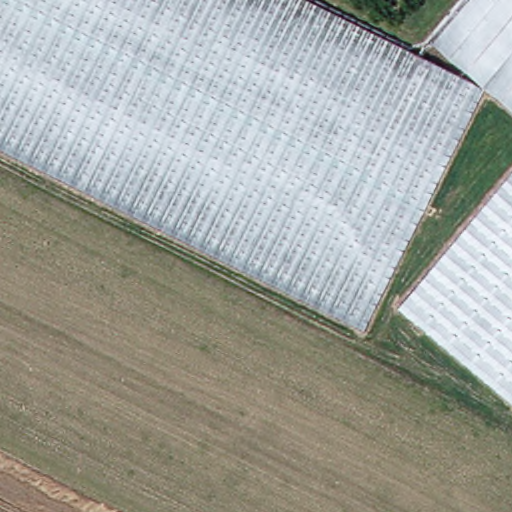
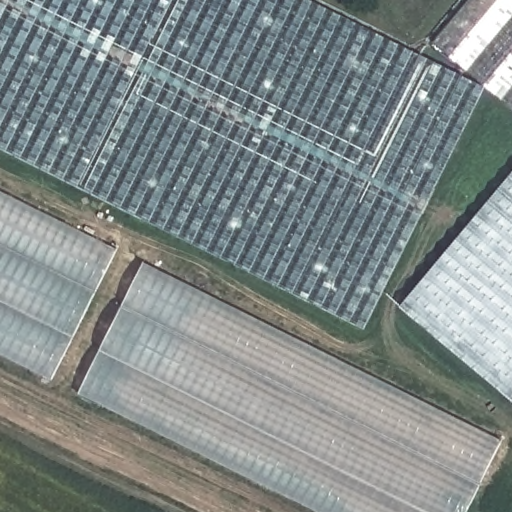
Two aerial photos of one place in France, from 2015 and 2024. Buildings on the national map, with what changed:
unchanged [(0,154),(0,0),(287,0),(471,92),(358,331),(0,154)]
unchanged [(462,0),(512,0),(512,115),(423,43),(462,0)]
unchanged [(512,166),(512,410),(393,307),(512,166)]
new [(0,355),(0,191),(118,250),(51,381),(0,355)]
new [(317,512),(80,393),(145,261),(502,441),(466,512),(317,512)]

